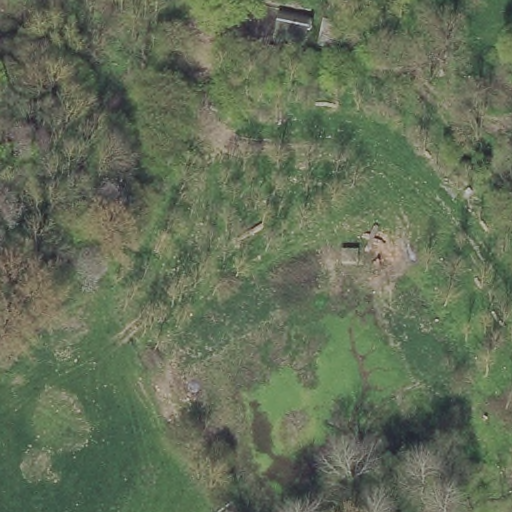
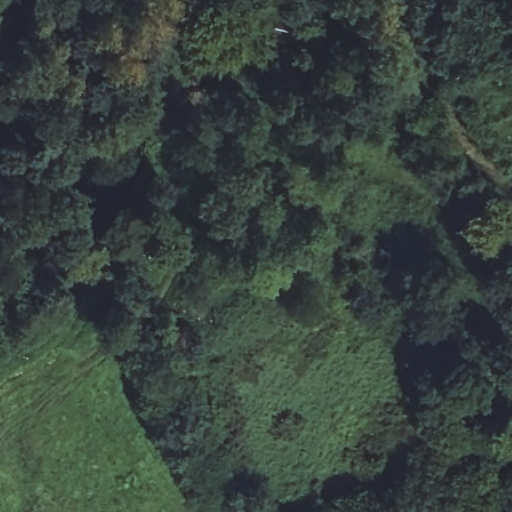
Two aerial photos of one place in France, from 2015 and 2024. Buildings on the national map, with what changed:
unchanged [(267,42),(270,9),(300,12),(298,46),(267,42)]

